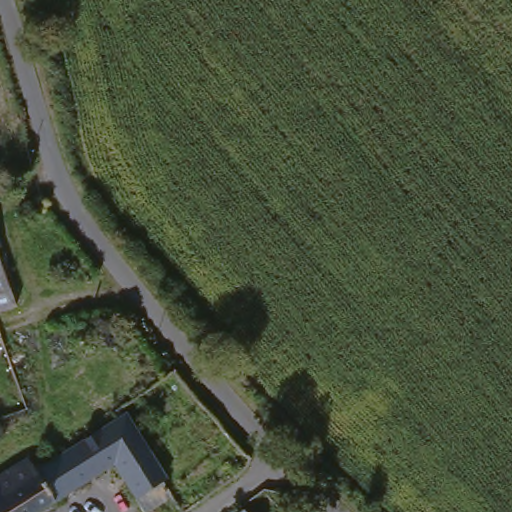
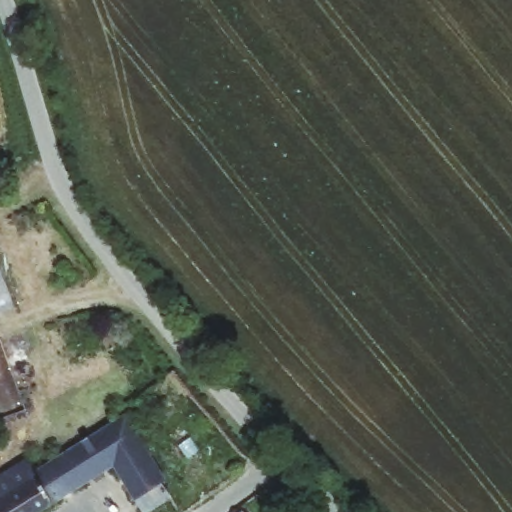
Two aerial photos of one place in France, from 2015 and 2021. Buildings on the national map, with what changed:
unchanged [(0,319),(0,284),(11,315),(0,319)]
unchanged [(139,511),(101,465),(40,512),(0,512),(0,475),(16,462),(26,475),(111,410),(171,487),(139,511)]

